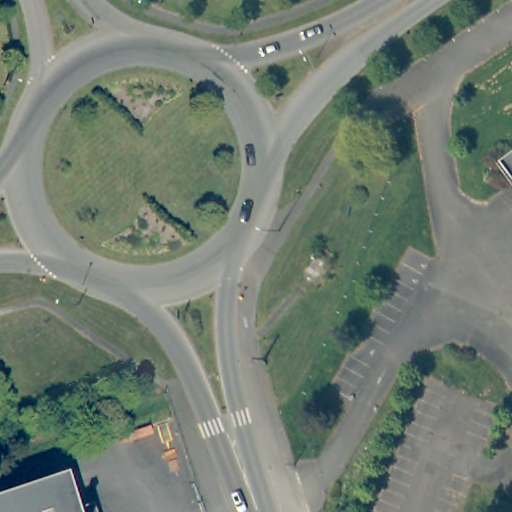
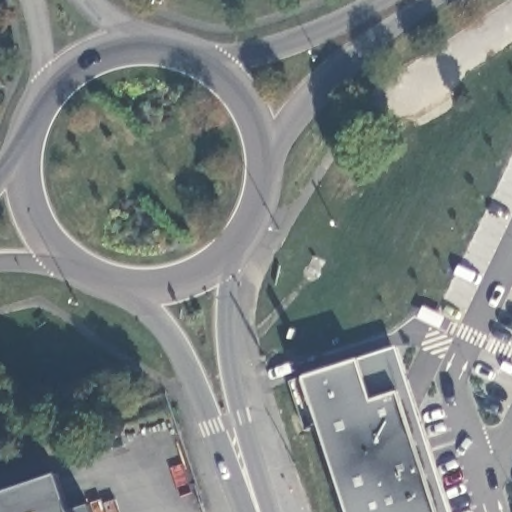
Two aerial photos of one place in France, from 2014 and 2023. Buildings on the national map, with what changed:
new [(305,375),(357,358),(396,346),(449,512),(349,512),(305,375)]
demolished [(498,409),(455,512),(373,512),(427,380),(498,409)]
unchanged [(66,503),(67,507),(75,504),(85,501),(87,507),(89,512),(0,512),(0,489),(55,470),(66,503)]

